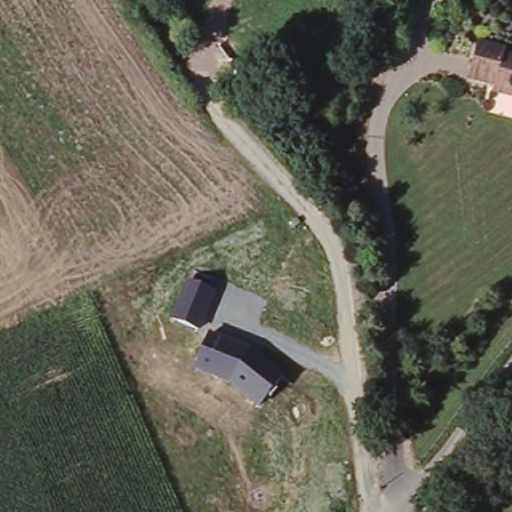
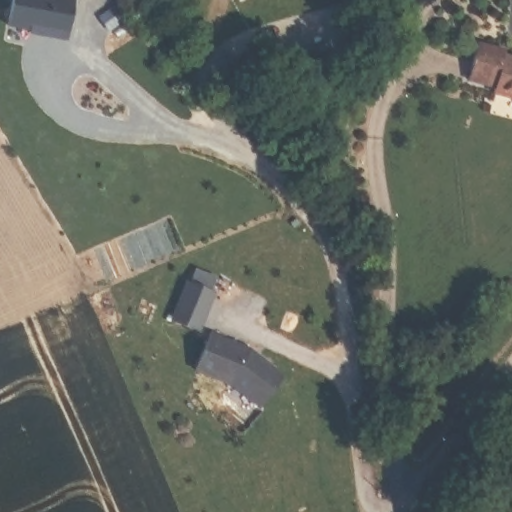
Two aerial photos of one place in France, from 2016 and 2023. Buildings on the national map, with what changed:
new [(32,35),(32,28),(9,24),(15,0),(78,0),(71,42),(32,35)]
unchanged [(490,90),(465,84),(475,44),(505,51),(503,58),(512,60),(512,102),(487,97),(490,90)]
unchanged [(199,332),(170,319),(186,278),(217,293),(199,332)]
unchanged [(258,406),(230,384),(194,371),(209,332),(255,353),(284,378),(258,406)]

